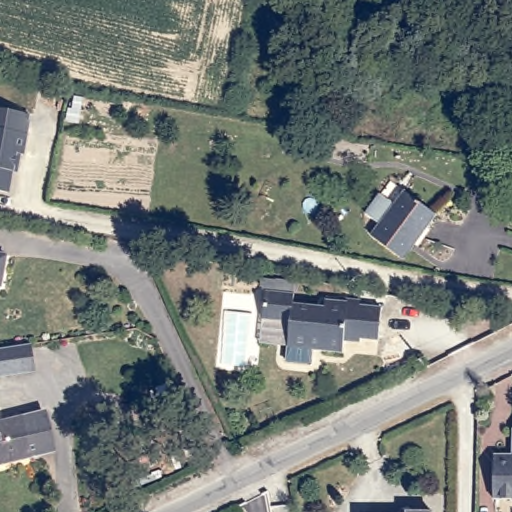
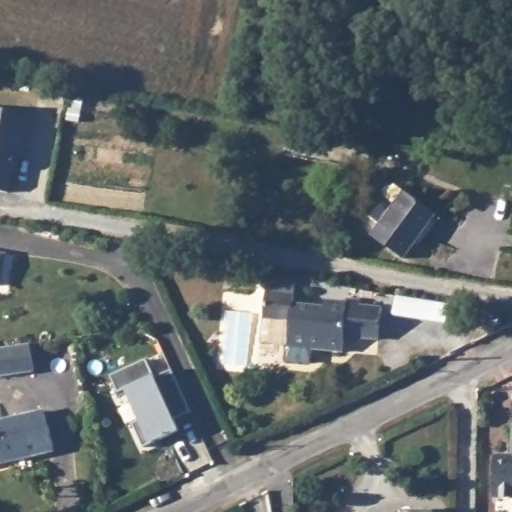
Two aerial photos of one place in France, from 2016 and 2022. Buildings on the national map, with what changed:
unchanged [(21,152),(13,151),(6,190),(0,189),(0,107),(28,111),(21,152)]
unchanged [(404,258),(373,234),(407,191),(437,215),(404,258)]
unchanged [(0,252),(6,254),(0,280),(0,252)]
unchanged [(293,296),(292,307),(323,310),(325,303),(347,305),(347,301),(358,302),(359,309),(380,310),(378,343),(360,342),(344,340),(344,345),(343,355),(342,355),(342,356),(326,354),(326,351),(312,350),(311,362),(286,360),(290,323),(263,321),(266,294),(293,296)]
unchanged [(0,377),(0,349),(28,345),(31,372),(0,377)]
new [(146,360),(155,377),(172,370),(191,412),(174,420),(180,431),(144,448),(133,424),(141,420),(128,389),(119,393),(111,376),(146,360)]
unchanged [(15,461),(15,465),(0,468),(0,426),(43,416),(53,450),(15,461)]
unchanged [(495,496),(497,455),(512,455),(512,496),(495,496)]
unchanged [(408,508),(425,507),(434,507),(434,512),(408,512),(408,508)]

